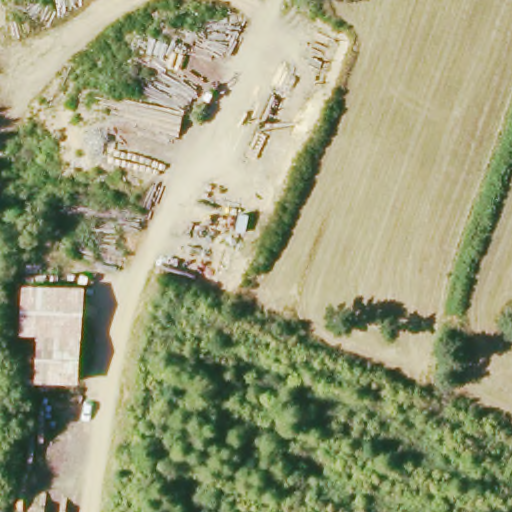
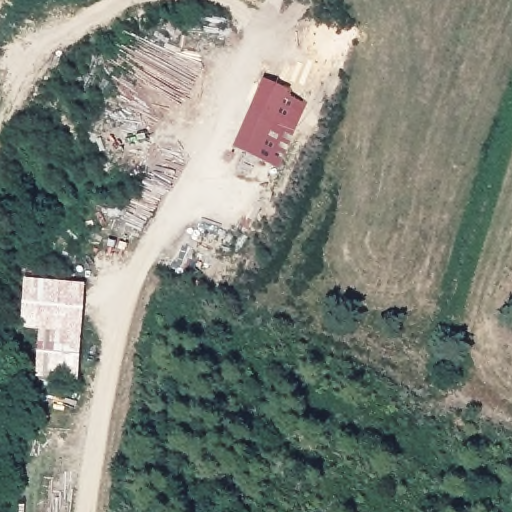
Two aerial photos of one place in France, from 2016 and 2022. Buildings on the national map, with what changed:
new [(281,169),(234,148),(264,80),(289,91),(287,95),(307,104),(281,169)]
unchanged [(80,290),(77,383),(41,382),(40,335),(23,335),(23,288),(80,290)]

